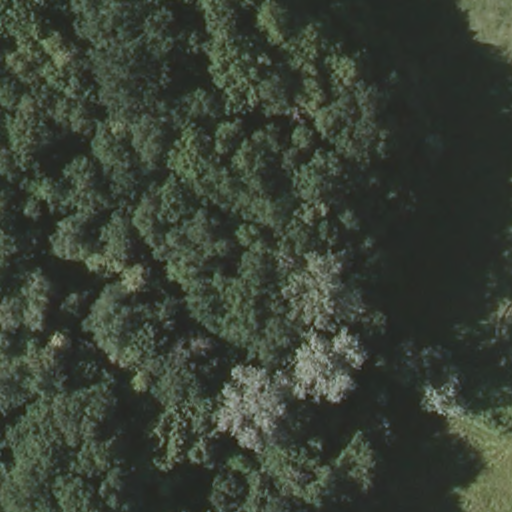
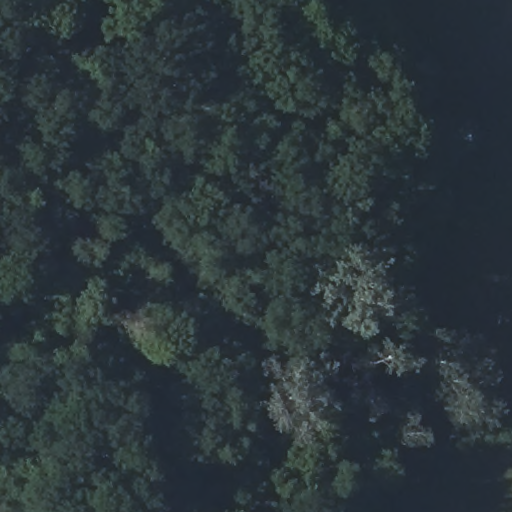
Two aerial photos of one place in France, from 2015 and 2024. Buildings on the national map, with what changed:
[]

